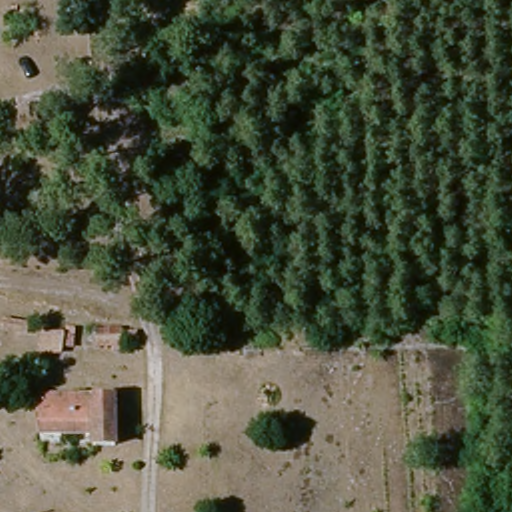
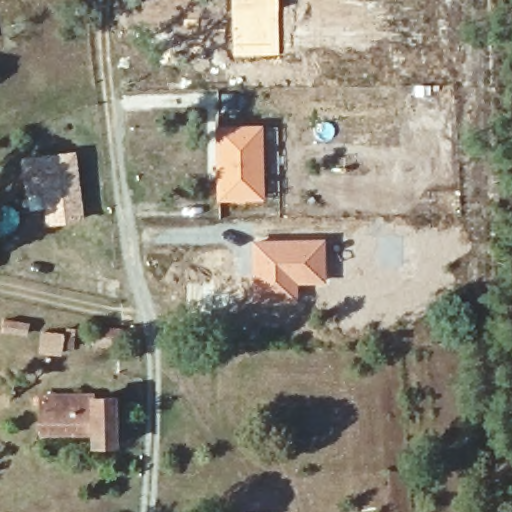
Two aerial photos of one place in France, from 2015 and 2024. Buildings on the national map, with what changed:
new [(231,58),(231,0),(279,0),(281,56),(231,58)]
new [(263,123),(264,202),(215,202),(213,125),(263,123)]
new [(76,150),(84,221),(44,226),(42,210),(27,211),(20,157),(76,150)]
new [(250,239),(325,237),(326,283),(297,284),(298,303),(250,305),(250,239)]
unchanged [(41,342),(42,322),(63,323),(62,343),(41,342)]
unchanged [(92,428),(36,425),(36,391),(58,391),(92,392),(92,396),(116,396),(115,448),(91,447),(92,428)]

